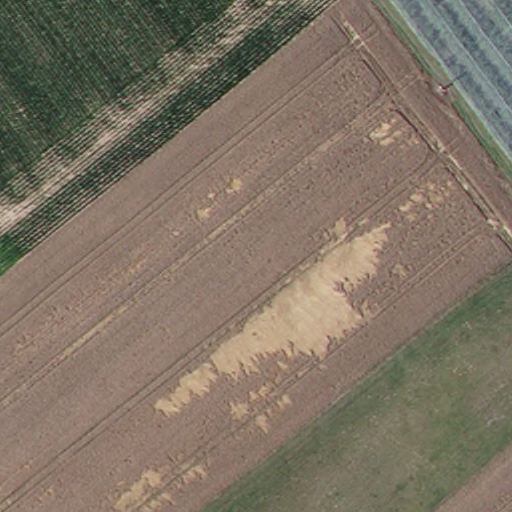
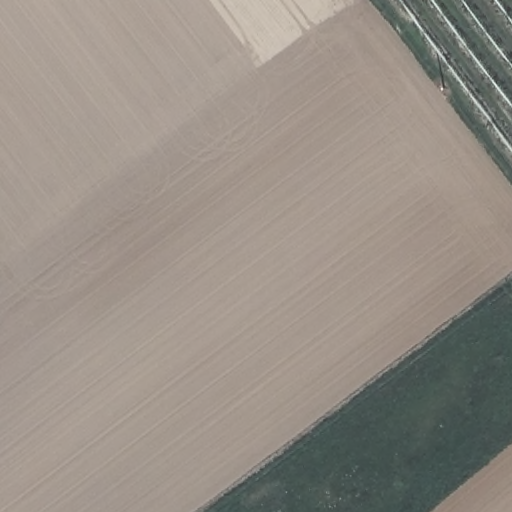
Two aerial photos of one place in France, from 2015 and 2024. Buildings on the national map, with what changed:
[]

